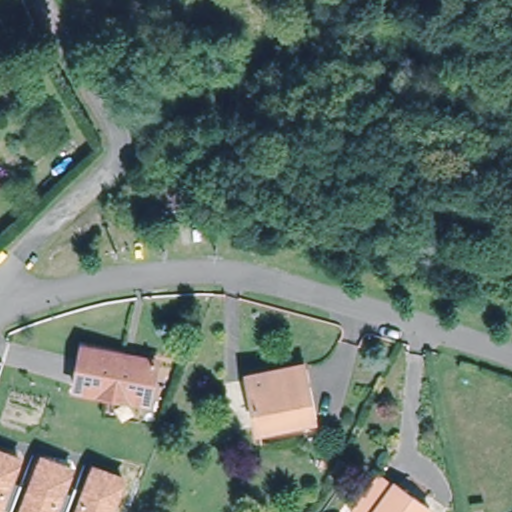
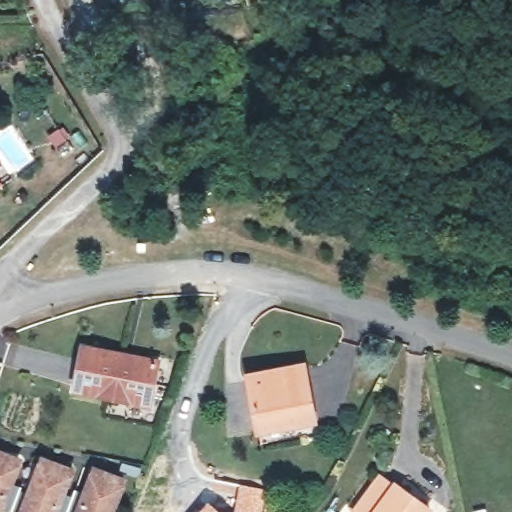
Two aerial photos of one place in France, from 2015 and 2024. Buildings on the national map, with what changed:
unchanged [(145,406),(71,392),(80,347),(155,361),(145,406)]
unchanged [(311,421),(295,424),(296,433),(260,440),(247,373),(301,365),(311,421)]
unchanged [(25,457),(15,481),(22,484),(13,512),(11,512),(5,510),(4,512),(0,512),(0,448),(25,457)]
unchanged [(78,468),(67,494),(74,496),(68,512),(19,512),(41,454),(78,468)]
unchanged [(127,476),(116,512),(75,512),(93,463),(127,476)]
unchanged [(390,486),(393,482),(429,509),(427,512),(350,512),(350,511),(376,476),(390,486)]
new [(232,511),(239,484),(265,489),(260,512),(232,512),(232,511)]
new [(208,500),(221,512),(198,512),(208,500)]

